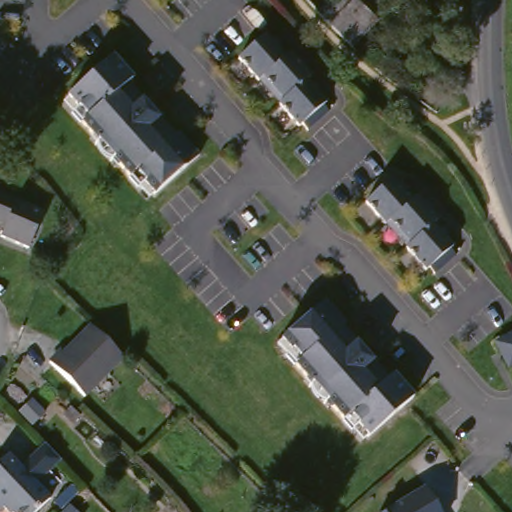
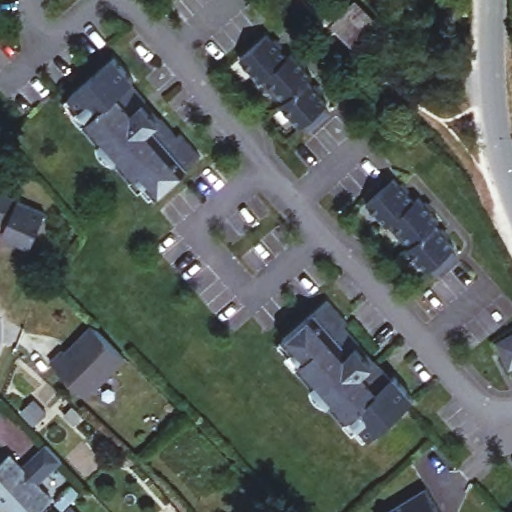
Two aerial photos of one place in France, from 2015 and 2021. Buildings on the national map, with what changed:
unchanged [(348,0),(350,0),(360,10),(365,5),(390,30),(365,56),(359,50),(336,26),(329,19),(348,0)]
unchanged [(241,56),(270,32),(332,105),(302,126),(241,56)]
unchanged [(97,144),(104,138),(97,131),(94,135),(82,122),(87,117),(68,95),(112,56),(133,80),(129,83),(145,102),(142,104),(157,121),(160,119),(176,137),(180,134),(200,157),(156,195),(137,173),(131,178),(120,165),(125,161),(120,156),(113,161),(97,144)]
unchanged [(395,175),(457,249),(427,270),(367,197),(395,175)]
unchanged [(48,215),(32,251),(4,238),(9,227),(0,223),(0,194),(48,215)]
unchanged [(328,298),(392,378),(400,373),(419,396),(363,444),(275,342),(328,298)]
unchanged [(106,338),(125,356),(86,395),(52,361),(63,349),(66,352),(93,325),(106,338)]
unchanged [(512,372),(495,341),(512,332),(512,372)]
unchanged [(50,414),(37,426),(24,413),(37,400),(50,414)]
unchanged [(73,409),(82,419),(75,426),(65,416),(73,409)]
unchanged [(32,512),(18,512),(15,509),(12,510),(5,503),(0,507),(0,506),(0,459),(10,450),(52,494),(32,512)]
unchanged [(377,512),(425,484),(441,512),(377,512)]

